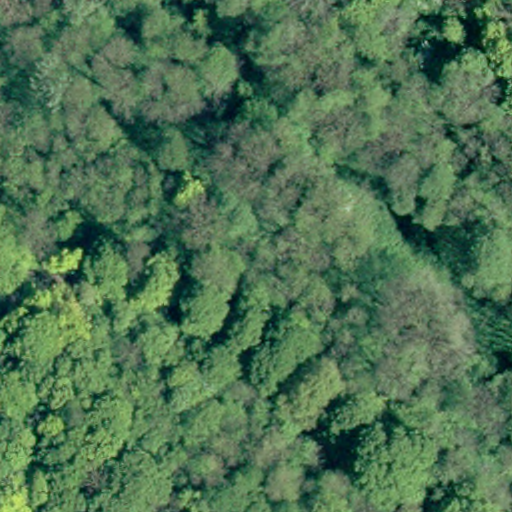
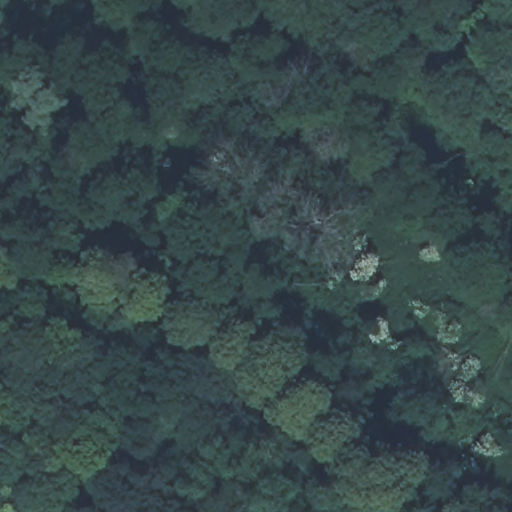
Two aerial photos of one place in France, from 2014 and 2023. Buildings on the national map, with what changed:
unchanged [(484,497),(512,469),(512,512),(500,512),(484,497)]

